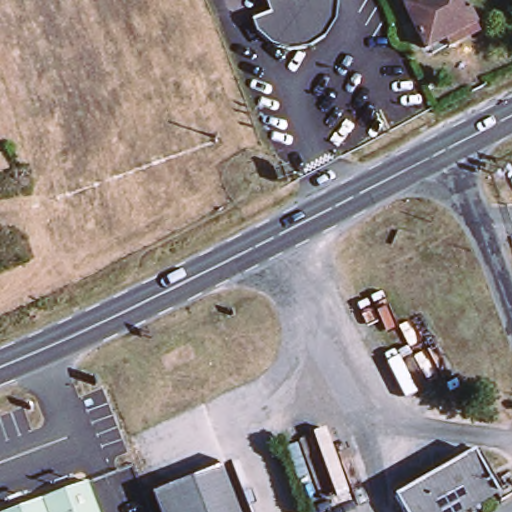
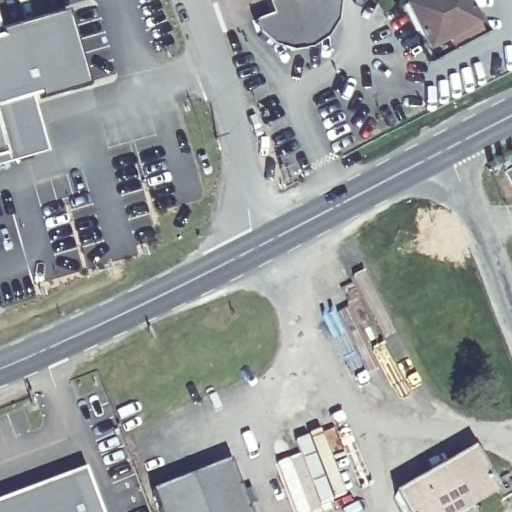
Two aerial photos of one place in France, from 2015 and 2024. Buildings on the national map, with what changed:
unchanged [(306,41),(290,44),(273,40),(260,28),(278,15),(273,0),(332,0),(332,1),(331,2),(331,4),(330,18),(321,32),(306,41)]
unchanged [(445,39),(425,47),(403,3),(410,0),(463,0),(475,24),(480,34),(450,50),(445,39)]
new [(0,31),(62,13),(85,87),(37,100),(35,94),(26,96),(42,153),(0,165),(0,31)]
unchanged [(469,512),(403,512),(395,497),(475,454),(497,496),(469,512)]
unchanged [(155,496),(228,467),(245,512),(160,512),(155,496)]
unchanged [(90,483),(101,512),(14,512),(90,483)]

